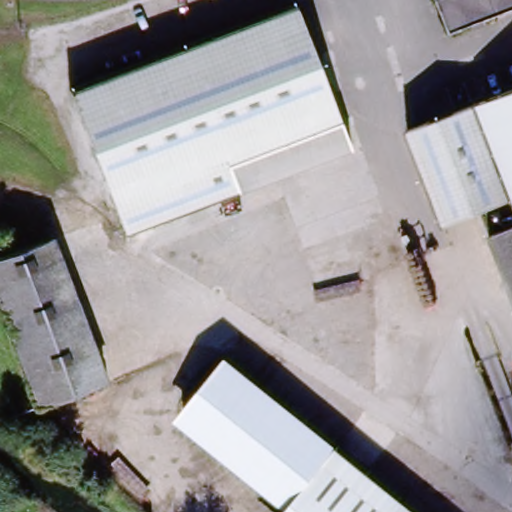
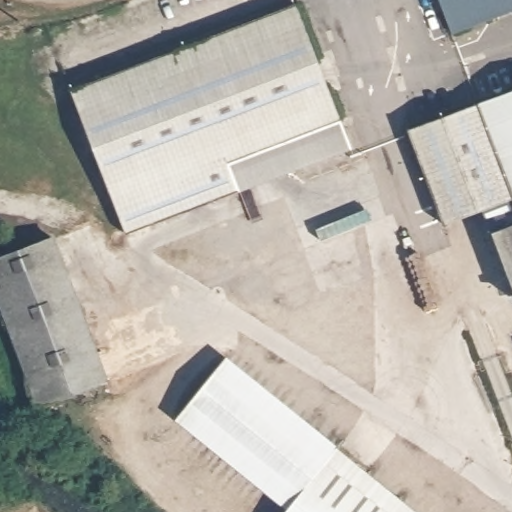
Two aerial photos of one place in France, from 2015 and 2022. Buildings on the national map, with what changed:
unchanged [(512,13),(454,34),(442,0),(512,0),(512,13)]
unchanged [(238,190),(124,230),(74,82),(302,3),(342,122),(228,161),(238,190)]
unchanged [(512,177),(484,101),(512,90),(512,177)]
unchanged [(447,225),(412,128),(484,101),(512,177),(512,218),(495,226),(488,209),(447,225)]
unchanged [(512,218),(512,272),(495,226),(512,218)]
unchanged [(38,408),(0,294),(0,258),(61,239),(108,385),(38,408)]
unchanged [(288,512),(170,421),(225,357),(335,453),(290,512),(288,512)]
unchanged [(289,512),(335,453),(408,512),(289,512)]

